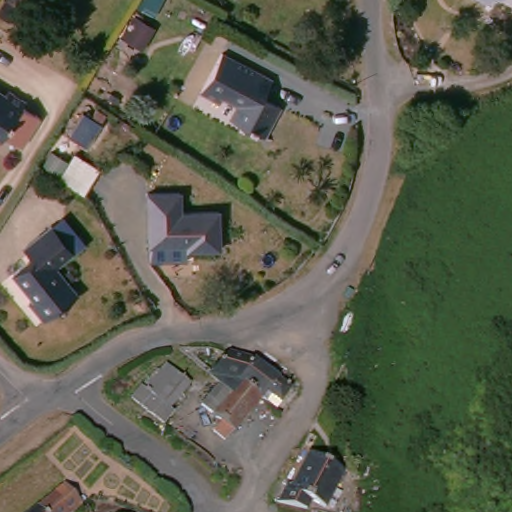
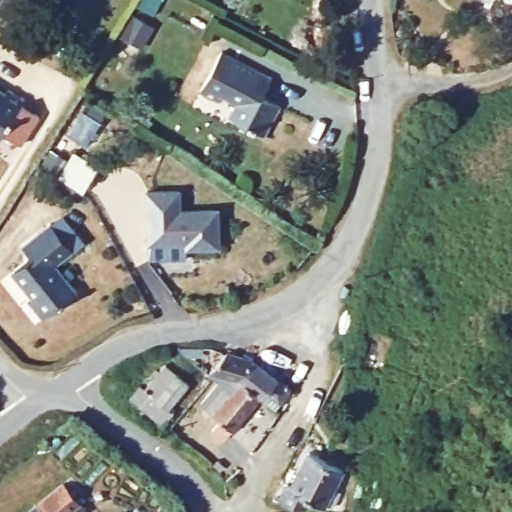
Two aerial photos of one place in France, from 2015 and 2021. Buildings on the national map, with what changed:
unchanged [(512,2),(508,0),(512,0),(512,2)]
unchanged [(220,58),(271,85),(262,103),(280,113),(266,141),(234,124),(240,112),(222,103),(218,111),(200,101),(220,58)]
unchanged [(1,99),(6,95),(21,103),(17,109),(34,118),(17,150),(0,141),(0,98),(1,99)]
unchanged [(175,196),(177,215),(214,213),(217,253),(180,255),(179,250),(145,253),(143,198),(175,196)]
unchanged [(49,327),(28,307),(34,301),(14,283),(30,264),(21,253),(43,226),(71,251),(53,273),(77,294),(49,327)]
unchanged [(264,394),(239,375),(232,388),(219,378),(212,373),(209,371),(220,354),(247,357),(295,392),(283,408),(264,394)]
unchanged [(186,389),(168,416),(176,421),(167,435),(124,407),(132,393),(138,395),(155,368),(186,389)]
unchanged [(230,441),(217,432),(226,420),(202,402),(219,378),(232,388),(239,375),(264,394),(230,441)]
unchanged [(342,481),(329,512),(307,512),(295,506),(311,468),(342,481)]
unchanged [(75,512),(37,512),(52,500),(60,493),(75,512)]

